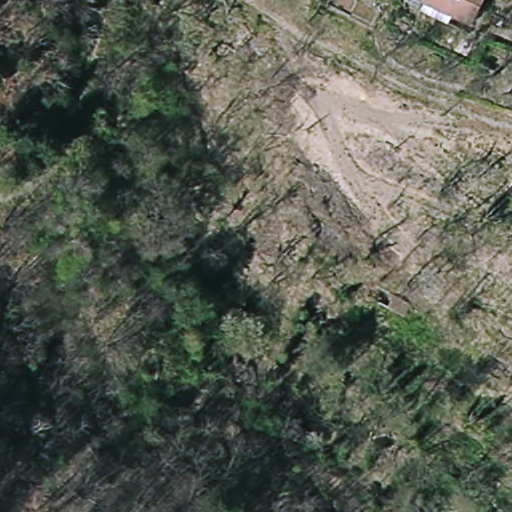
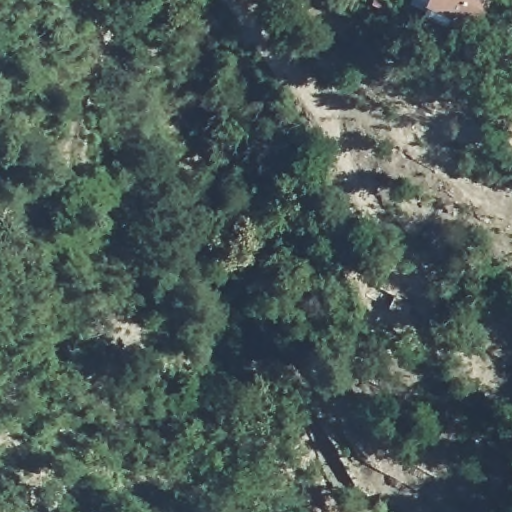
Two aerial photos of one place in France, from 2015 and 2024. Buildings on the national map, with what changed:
unchanged [(426,0),(484,0),(475,28),(423,6),(426,0)]
unchanged [(339,338),(362,338),(362,352),(339,351),(339,338)]

